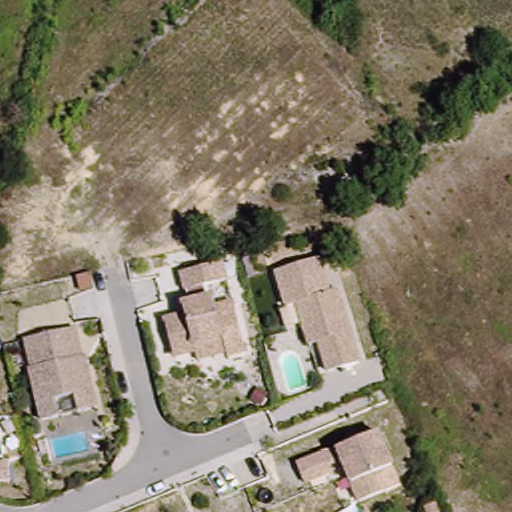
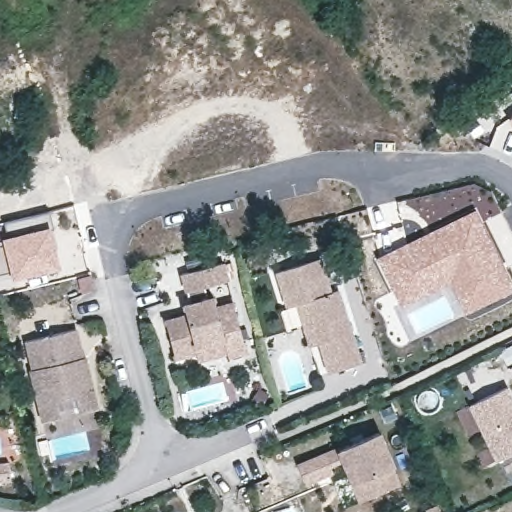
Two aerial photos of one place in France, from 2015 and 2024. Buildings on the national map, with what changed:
new [(512,117),(512,125),(509,120),(512,117)]
new [(476,210),(512,283),(512,292),(466,314),(451,283),(403,306),(377,258),(476,210)]
new [(49,234),(56,266),(15,275),(3,221),(48,211),(53,232),(49,234)]
new [(9,272),(0,274),(0,227),(1,234),(9,272)]
unchanged [(319,344),(309,347),(301,322),(287,330),(279,310),(284,307),(273,270),(320,255),(331,290),(340,288),(361,358),(327,370),(319,344)]
unchanged [(163,318),(184,312),(181,300),(185,300),(178,272),(225,261),(229,277),(205,283),(208,295),(214,295),(216,307),(233,301),(247,350),(229,356),(227,350),(202,360),(198,350),(173,356),(163,318)]
new [(94,288),(83,292),(79,278),(91,275),(94,288)]
unchanged [(23,339),(81,328),(97,406),(81,411),(78,395),(58,400),(61,415),(41,421),(23,339)]
new [(512,396),(512,455),(496,463),(468,406),(508,387),(512,396)]
unchanged [(334,448),(381,429),(395,463),(381,470),(387,488),(358,502),(350,481),(342,467),(306,483),(297,461),(334,448)]
new [(10,481),(0,482),(0,466),(8,465),(10,481)]

